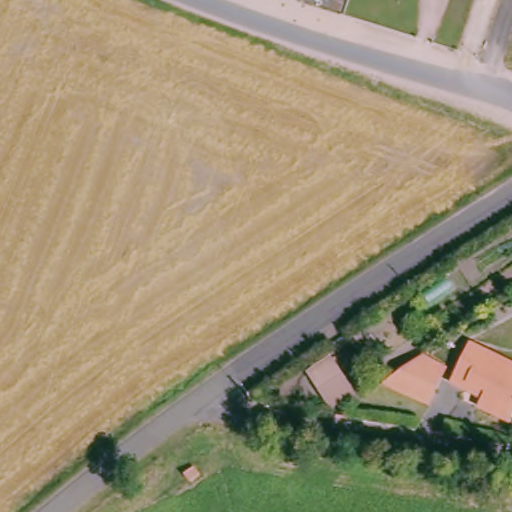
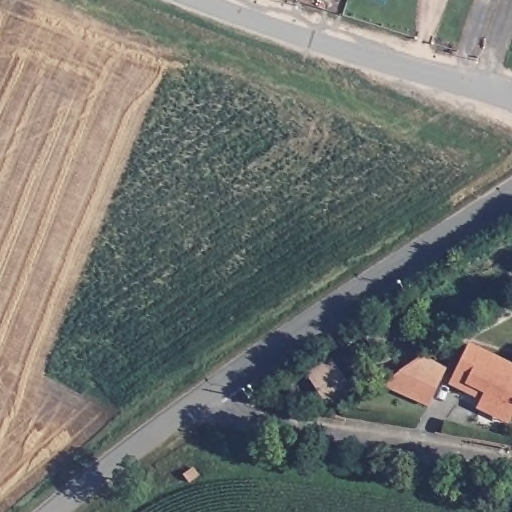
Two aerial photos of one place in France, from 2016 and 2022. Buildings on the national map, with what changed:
unchanged [(512,418),(496,412),(493,417),(474,409),(480,395),(461,387),(457,394),(445,388),(465,349),(512,370),(512,417),(512,418)]
unchanged [(302,371),(329,354),(352,391),(325,407),(302,371)]
unchanged [(387,381),(414,363),(439,374),(426,400),(387,381)]

